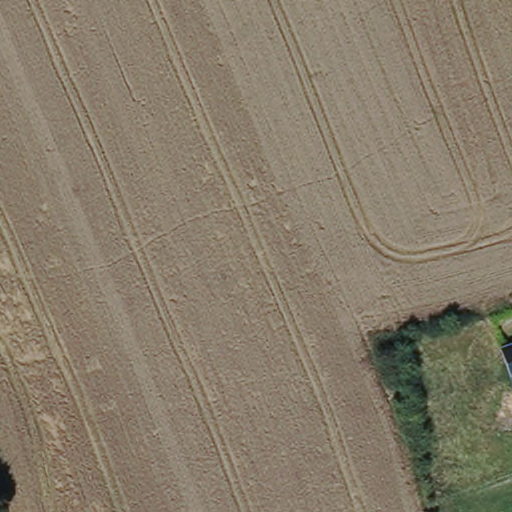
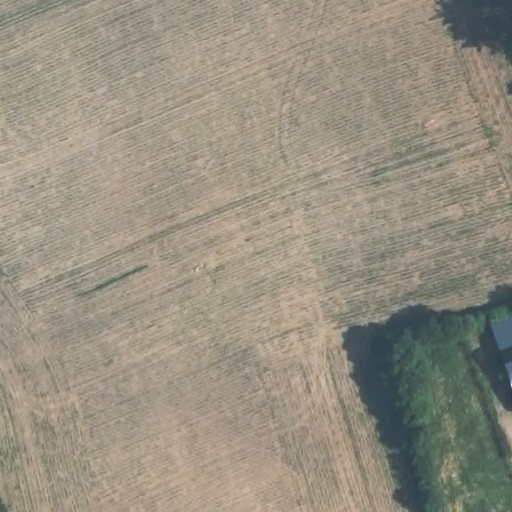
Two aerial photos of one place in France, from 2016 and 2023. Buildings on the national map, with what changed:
unchanged [(512,349),(512,362),(508,351),(512,349)]

